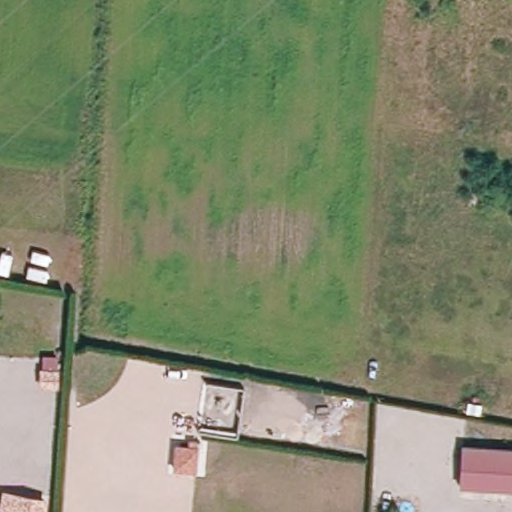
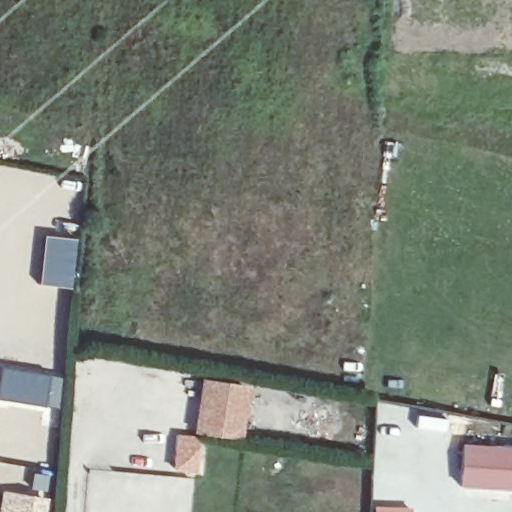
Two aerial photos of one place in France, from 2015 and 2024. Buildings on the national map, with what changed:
new [(43,234),(78,237),(72,288),(39,283),(43,234)]
new [(61,377),(58,407),(0,397),(0,382),(3,367),(61,377)]
demolished [(49,375),(49,390),(34,389),(34,374),(49,375)]
new [(200,377),(250,385),(241,439),(193,432),(200,377)]
new [(165,445),(179,446),(179,440),(187,441),(186,447),(188,447),(185,470),(164,467),(165,445)]
unchanged [(512,453),(512,493),(459,490),(462,450),(512,453)]
unchanged [(44,504),(42,512),(13,512),(15,499),(44,504)]

